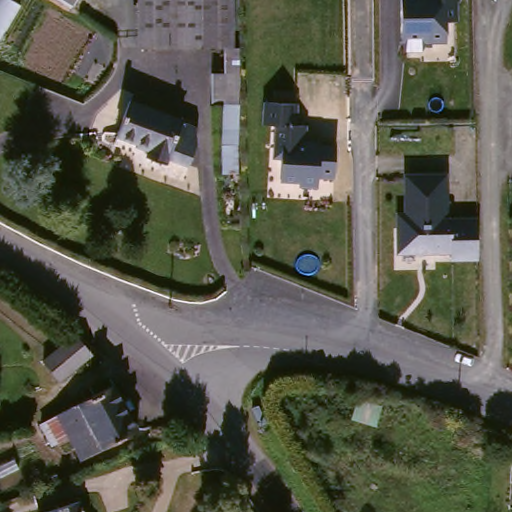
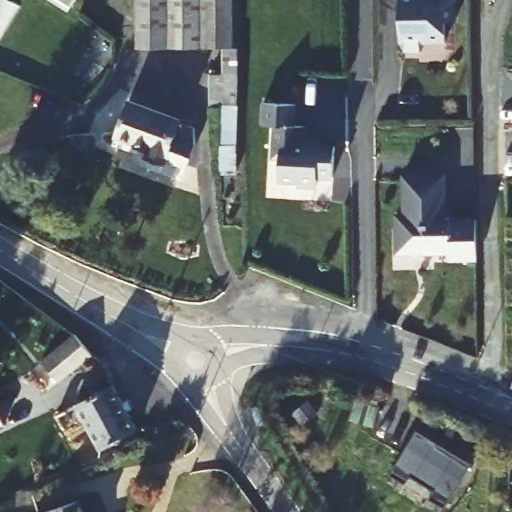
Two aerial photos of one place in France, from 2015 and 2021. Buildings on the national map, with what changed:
unchanged [(230,162),(211,163),(211,68),(220,68),(220,45),(135,44),(136,0),(231,0),(230,162)]
unchanged [(458,21),(445,22),(446,43),(424,45),(422,51),(400,52),(400,0),(457,0),(458,21)]
unchanged [(160,161),(147,156),(144,154),(149,144),(117,131),(132,99),(180,119),(179,120),(190,125),(193,142),(182,163),(162,155),(160,161)]
unchanged [(307,126),(307,141),(310,142),(310,144),(338,145),(337,175),(322,175),(322,185),(302,184),(302,180),(283,179),(284,158),(277,158),(277,124),(307,126)]
unchanged [(450,256),(450,248),(397,249),(397,210),(405,210),(405,171),(445,171),(445,216),(476,215),(477,248),(477,255),(450,256)]
unchanged [(60,376),(44,355),(75,330),(91,350),(60,376)]
unchanged [(42,420),(60,411),(116,385),(137,425),(84,456),(72,434),(53,443),(42,420)]
unchanged [(384,401),(375,426),(347,416),(355,392),(384,401)]
new [(473,465),(446,509),(429,498),(435,490),(410,477),(406,485),(390,475),(418,429),(473,465)]
unchanged [(42,512),(82,500),(86,512),(42,512)]

